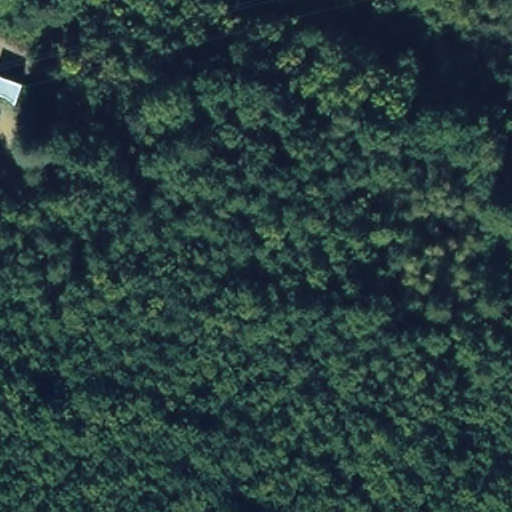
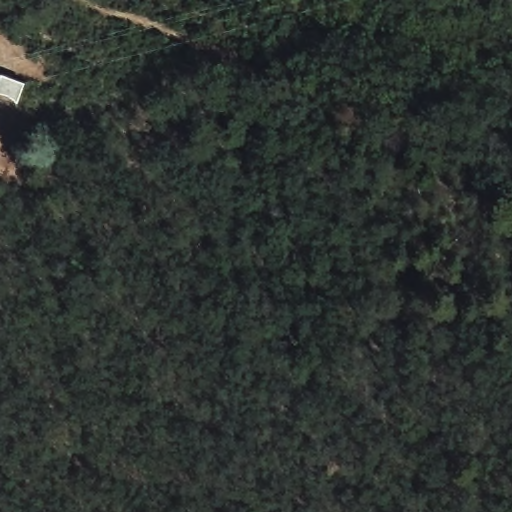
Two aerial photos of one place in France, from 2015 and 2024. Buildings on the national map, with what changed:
unchanged [(30,86),(20,107),(0,101),(0,77),(2,71),(30,86)]

